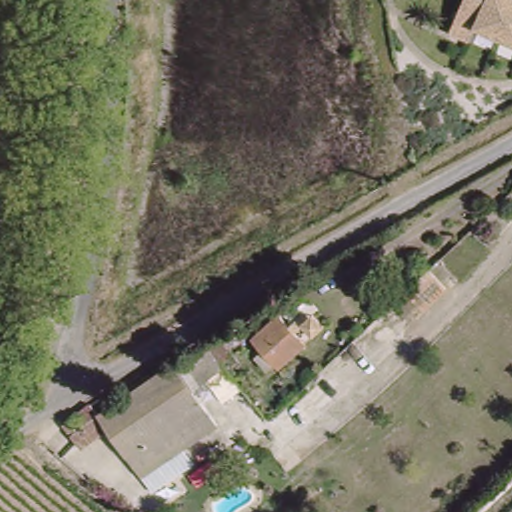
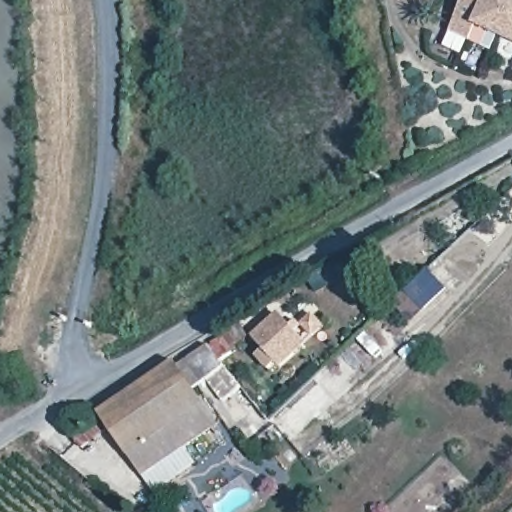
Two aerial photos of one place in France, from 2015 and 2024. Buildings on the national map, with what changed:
unchanged [(472,23),(466,38),(446,28),(459,0),(512,0),(512,42),(472,23)]
unchanged [(256,354),(264,346),(255,337),(279,316),(302,340),(280,363),(276,359),(267,367),(256,354)]
unchanged [(196,346),(206,339),(217,354),(210,361),(216,367),(182,395),(163,372),(196,346)]
unchanged [(158,366),(163,372),(182,395),(206,424),(137,481),(106,443),(157,400),(141,379),(158,366)]
unchanged [(157,400),(106,443),(94,428),(72,447),(70,448),(47,422),(64,414),(76,406),(88,419),(141,379),(157,400)]

